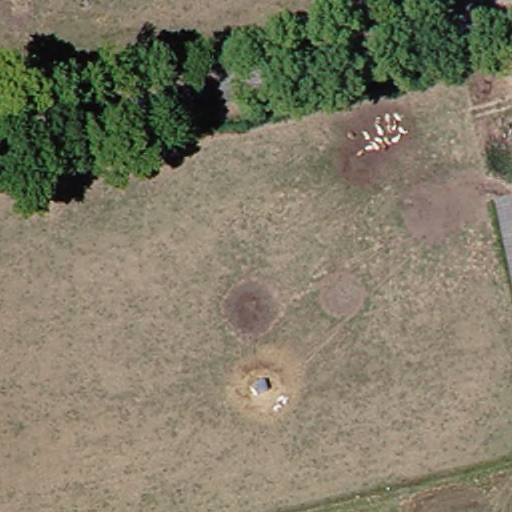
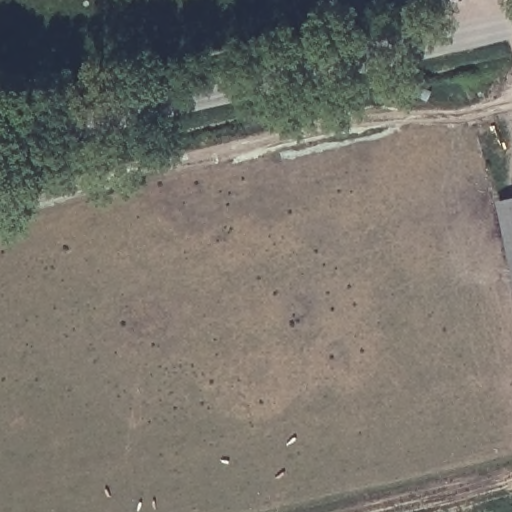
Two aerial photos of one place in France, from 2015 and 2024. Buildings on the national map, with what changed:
unchanged [(505,204),(512,202),(512,234),(505,204)]

